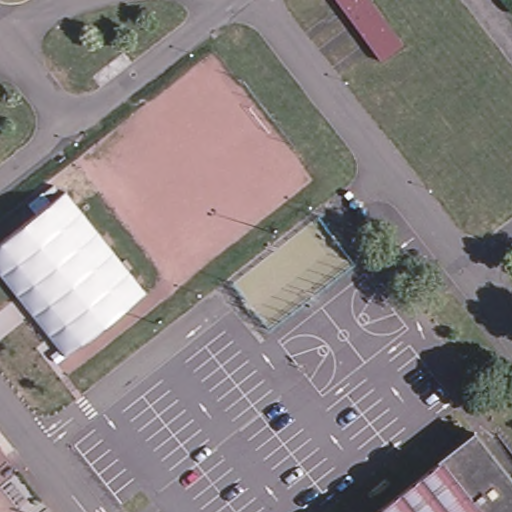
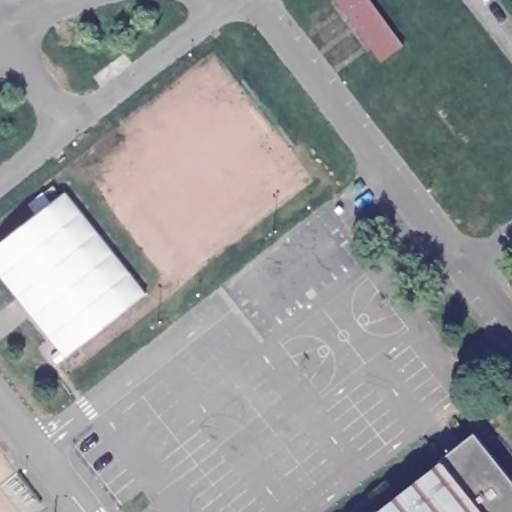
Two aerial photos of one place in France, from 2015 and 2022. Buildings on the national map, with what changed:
unchanged [(337,0),(370,0),(403,46),(380,61),(337,0)]
unchanged [(65,357),(0,274),(0,243),(36,213),(30,204),(44,192),(51,202),(65,190),(146,293),(65,357)]
unchanged [(512,474),(512,512),(482,512),(440,461),(477,431),(512,474)]
unchanged [(49,512),(15,512),(0,492),(0,490),(1,490),(0,488),(0,462),(6,457),(49,512)]
unchanged [(482,512),(375,512),(440,461),(482,512)]

